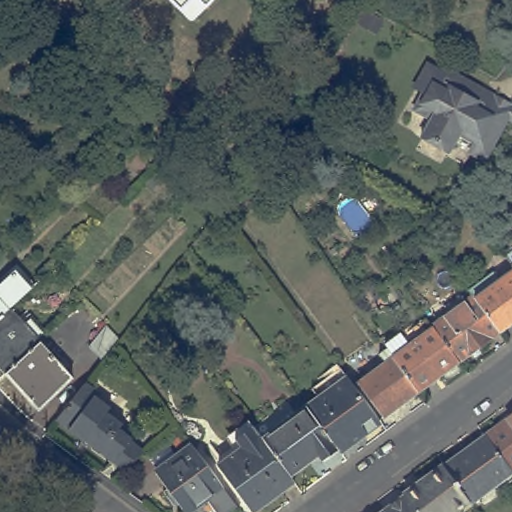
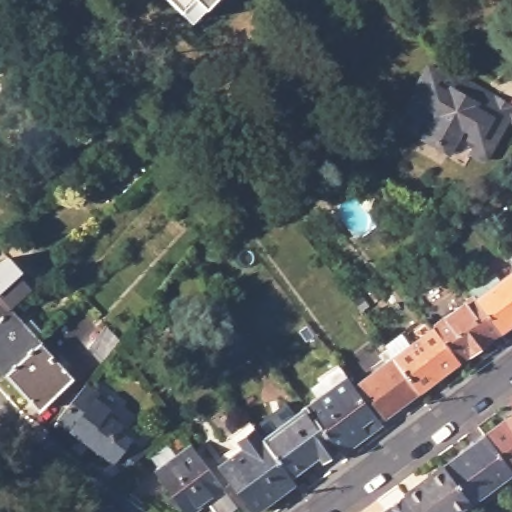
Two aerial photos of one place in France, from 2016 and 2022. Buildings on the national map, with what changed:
unchanged [(192,20),(181,7),(173,0),(211,0),(207,4),(192,20)]
unchanged [(432,146),(426,142),(427,139),(437,121),(419,112),(428,95),(417,89),(428,66),(444,75),(447,70),(483,90),(512,105),(512,114),(511,114),(487,158),(475,151),(457,142),(452,152),(450,155),(441,150),(432,146)]
unchanged [(512,254),(512,262),(508,257),(512,254)]
unchanged [(18,271),(34,288),(12,307),(0,319),(0,288),(18,271)]
unchanged [(474,297),(469,290),(487,277),(495,288),(512,275),(512,327),(502,335),(474,297)]
unchanged [(502,335),(464,361),(437,325),(474,297),(502,335)]
unchanged [(42,340),(12,372),(0,360),(0,319),(12,307),(42,340)]
unchanged [(423,391),(398,357),(396,355),(388,345),(406,331),(409,335),(432,318),(437,325),(464,361),(423,391)]
unchanged [(85,348),(102,327),(114,340),(111,345),(97,363),(85,348)]
unchanged [(12,372),(42,340),(76,376),(45,407),(12,372)]
unchanged [(423,391),(389,416),(364,382),(398,357),(423,391)]
unchanged [(351,380),(382,423),(341,452),(310,410),(351,380)]
unchanged [(63,420),(92,382),(104,391),(100,397),(114,408),(110,413),(125,425),(122,430),(135,439),(132,441),(149,453),(127,470),(63,420)]
unchanged [(265,438),(307,407),(310,410),(341,452),(325,465),(320,458),(293,477),(265,438)]
unchanged [(512,416),(512,469),(487,435),(512,416)]
unchanged [(225,463),(247,447),(239,438),(256,426),(265,438),(293,477),(298,483),(260,512),(225,463)]
unchanged [(487,435),(512,469),(512,473),(474,501),(447,465),(487,435)]
unchanged [(159,471),(195,445),(226,487),(195,512),(189,512),(159,471)]
unchanged [(407,494),(447,465),(474,501),(460,512),(420,512),(407,494)]
unchanged [(407,494),(420,512),(383,512),(407,494)]

